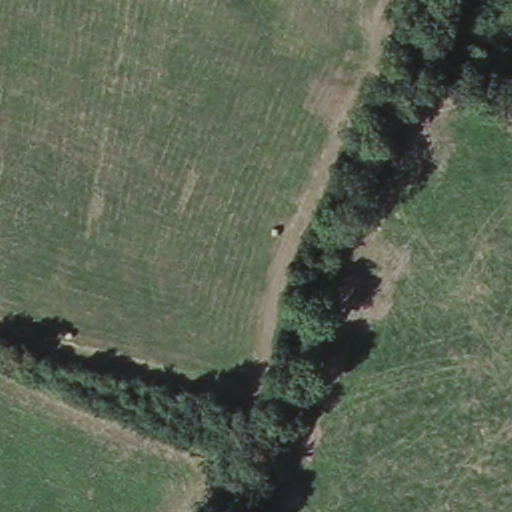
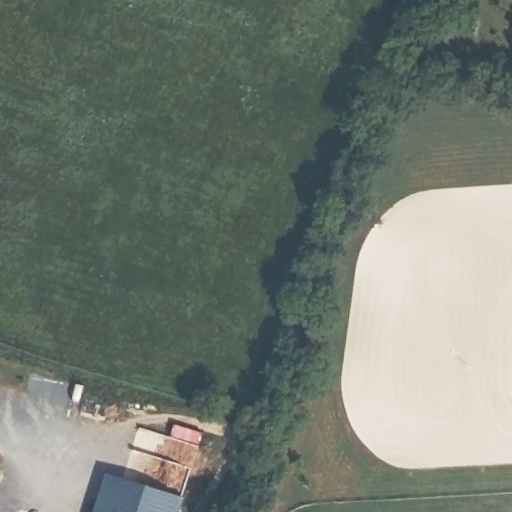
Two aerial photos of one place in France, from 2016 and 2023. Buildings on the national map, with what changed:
new [(93,512),(103,478),(182,501),(179,512),(93,512)]

